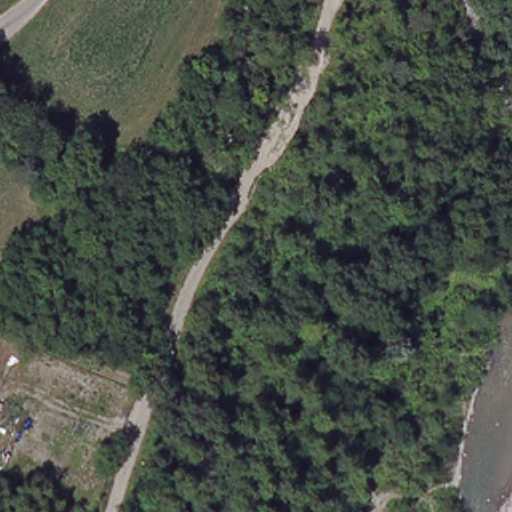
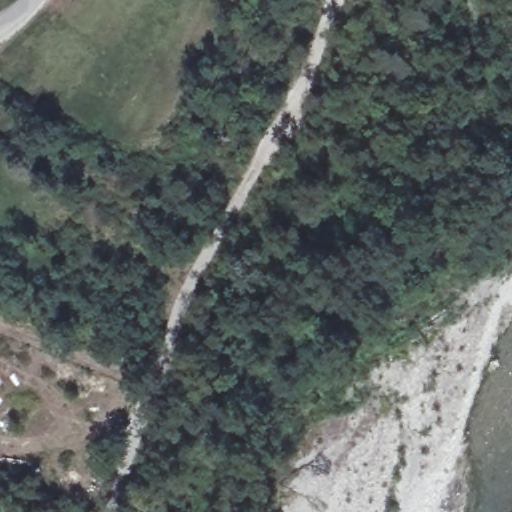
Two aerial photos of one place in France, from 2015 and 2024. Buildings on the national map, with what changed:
[]

